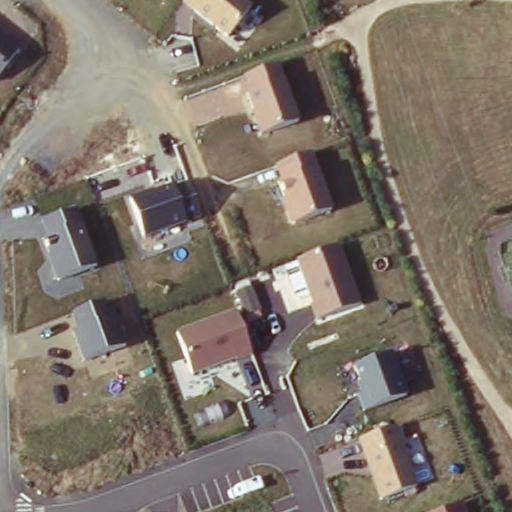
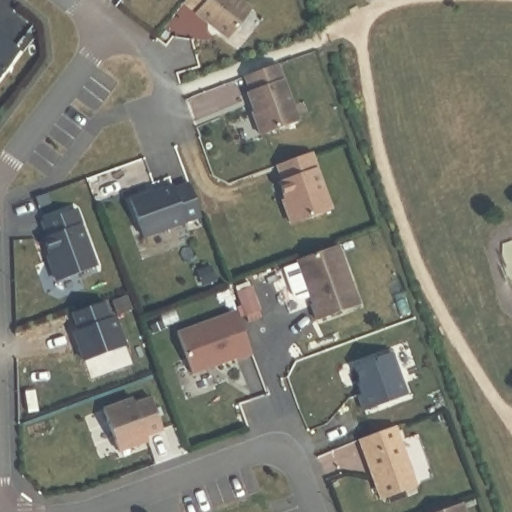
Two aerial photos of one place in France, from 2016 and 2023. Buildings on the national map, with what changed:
unchanged [(229,41),(180,5),(183,0),(242,0),(253,9),(229,41)]
unchanged [(0,78),(0,31),(23,48),(0,78)]
unchanged [(300,123),(259,138),(240,79),(281,66),(300,123)]
unchanged [(334,215),(290,229),(274,186),(279,183),(274,169),(312,154),(334,215)]
unchanged [(203,220),(143,242),(127,202),(175,186),(177,191),(190,184),(203,220)]
unchanged [(100,268),(54,285),(39,242),(45,239),(40,226),(79,213),(100,268)]
unchanged [(294,264),(339,248),(359,306),(318,322),(294,264)]
new [(248,325),(244,318),(234,290),(248,285),(258,313),(260,320),(248,325)]
unchanged [(114,323),(118,322),(128,347),(83,366),(71,336),(78,333),(70,315),(104,302),(114,323)]
unchanged [(234,312),(249,355),(192,375),(174,333),(234,312)]
unchanged [(408,397),(364,414),(352,382),(362,379),(356,366),(394,353),(408,397)]
new [(131,402),(133,408),(149,402),(160,433),(144,439),(146,444),(116,455),(101,413),(131,402)]
unchanged [(419,488),(381,504),(358,442),(398,428),(419,488)]
unchanged [(462,504),(465,512),(441,512),(462,504)]

